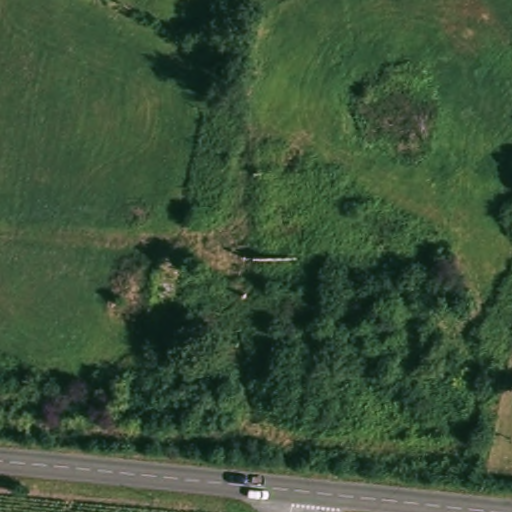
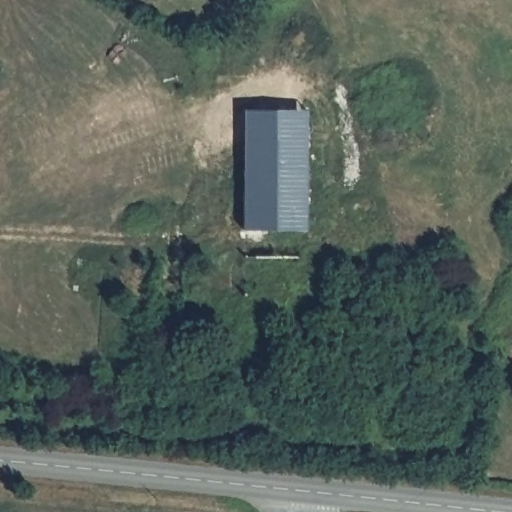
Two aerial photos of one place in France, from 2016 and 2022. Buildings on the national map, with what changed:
new [(244,110),(308,111),(307,231),(244,230),(244,110)]

